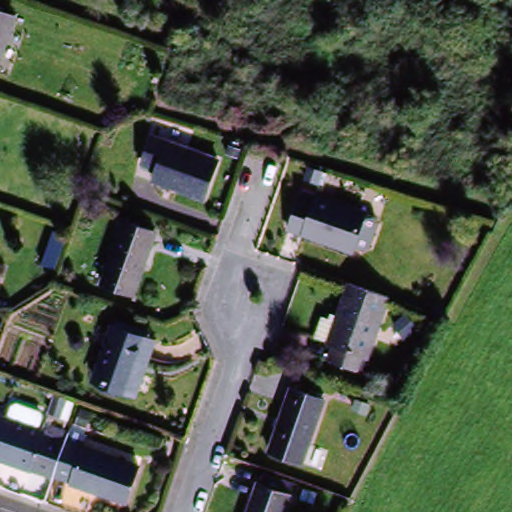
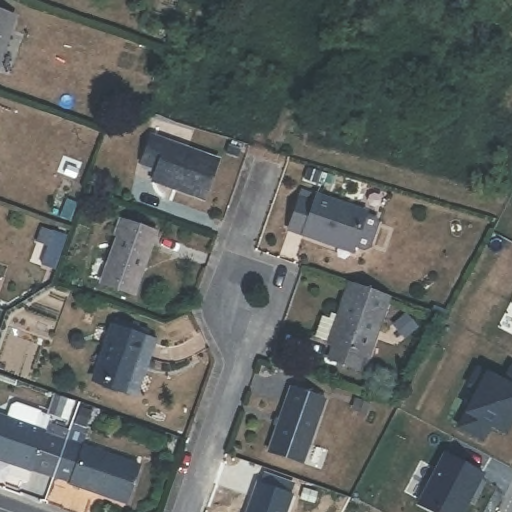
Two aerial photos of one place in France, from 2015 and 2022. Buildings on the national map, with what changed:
unchanged [(0,11),(11,15),(0,47),(0,11)]
unchanged [(202,208),(170,196),(171,191),(140,180),(153,140),(217,164),(202,208)]
unchanged [(306,207),(311,199),(373,220),(363,255),(318,243),(316,246),(282,235),(293,202),(306,207)]
unchanged [(131,297),(96,284),(113,241),(108,239),(116,221),(153,239),(131,297)]
unchanged [(375,357),(366,353),(361,370),(331,360),(337,345),(330,341),(351,286),(397,301),(375,357)]
unchanged [(90,379),(110,327),(143,340),(131,371),(143,376),(135,396),(90,379)]
new [(506,434),(491,425),(483,440),(460,428),(479,392),(469,386),(478,370),(504,383),(512,368),(512,422),(506,434)]
unchanged [(289,390),(321,401),(299,463),(267,452),(289,390)]
unchanged [(10,463),(9,466),(0,464),(0,421),(42,435),(45,428),(70,436),(56,478),(10,463)]
unchanged [(77,490),(90,455),(144,473),(131,510),(77,490)]
new [(449,455),(482,473),(461,512),(424,512),(420,510),(449,455)]
unchanged [(260,486),(284,494),(288,487),(297,490),(289,512),(251,512),(260,486)]

